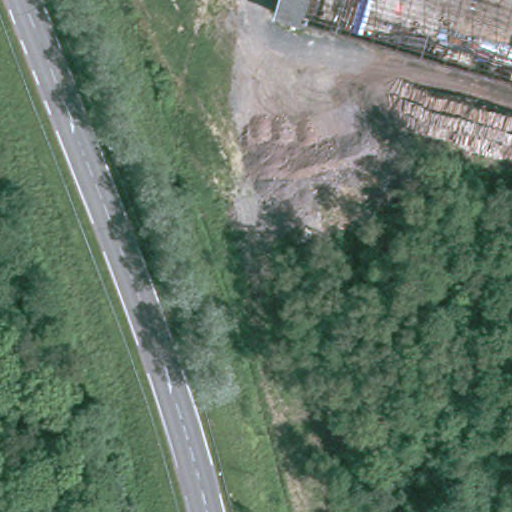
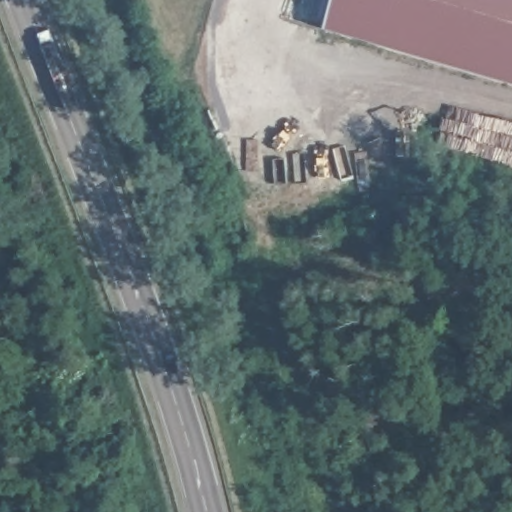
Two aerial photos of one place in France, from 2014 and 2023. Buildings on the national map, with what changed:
demolished [(316,0),(310,23),(272,12),(276,0),(316,0)]
new [(332,0),(512,0),(512,82),(324,27),(332,0)]

